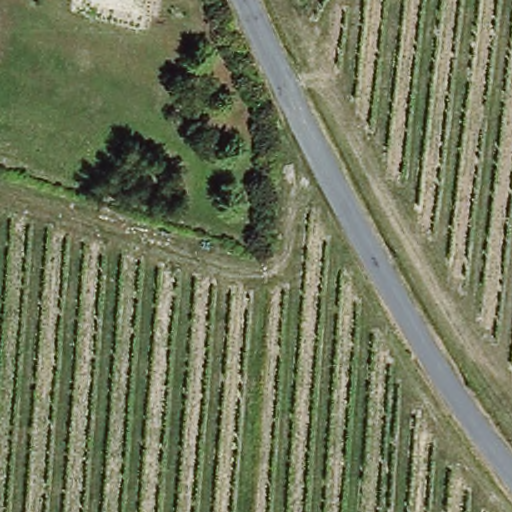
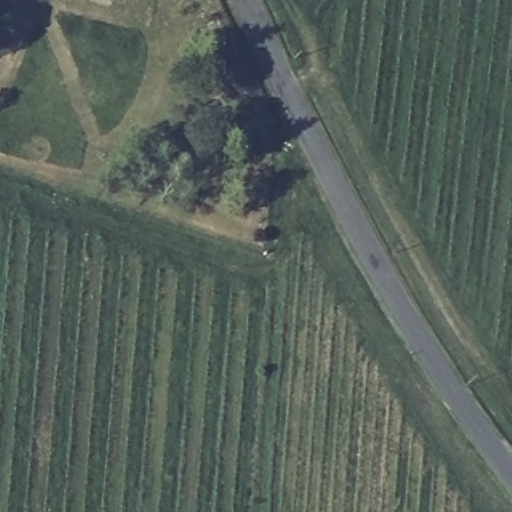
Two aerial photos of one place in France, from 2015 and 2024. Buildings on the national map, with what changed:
[]

